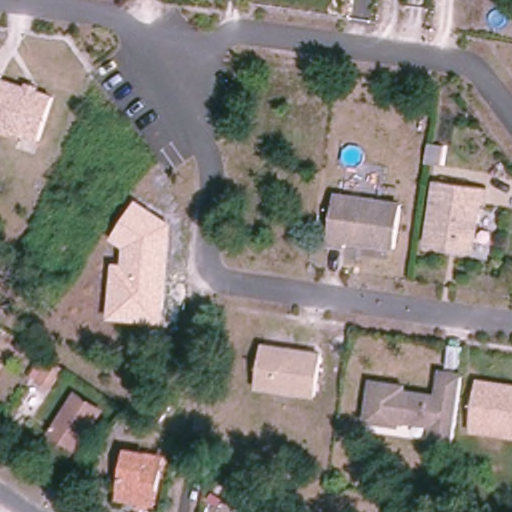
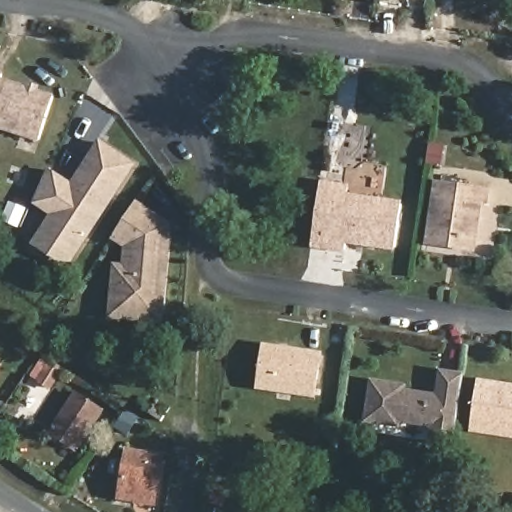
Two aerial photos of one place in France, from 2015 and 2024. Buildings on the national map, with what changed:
unchanged [(3,75),(3,83),(53,101),(40,143),(0,129),(0,75),(3,75)]
new [(36,202),(47,175),(71,190),(99,146),(132,168),(78,251),(70,263),(38,242),(56,215),(36,202)]
unchanged [(490,193),(488,208),(485,206),(478,254),(431,249),(440,185),(490,193)]
unchanged [(165,325),(108,320),(114,264),(123,264),(125,248),(110,237),(139,199),(173,223),(165,325)]
unchanged [(405,210),(398,250),(350,245),(349,251),(329,248),(339,200),(405,210)]
unchanged [(318,398),(258,388),(264,344),(326,353),(318,398)]
unchanged [(48,385),(35,376),(46,357),(47,358),(58,365),(48,385)]
unchanged [(435,445),(436,426),(402,421),(401,430),(370,423),(374,382),(408,385),(408,395),(442,396),(443,373),(466,376),(455,446),(435,445)]
unchanged [(53,431),(59,422),(74,398),(80,390),(106,407),(100,415),(84,440),(79,449),(53,431)]
unchanged [(512,395),(512,433),(480,428),(485,391),(512,395)]
unchanged [(142,499),(123,495),(131,452),(155,455),(164,457),(164,461),(160,489),(158,502),(142,499)]

